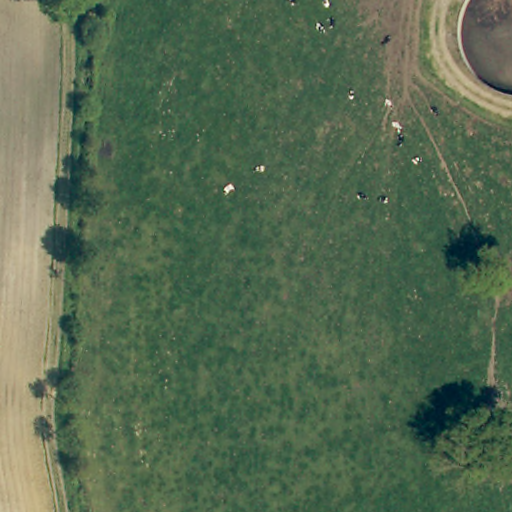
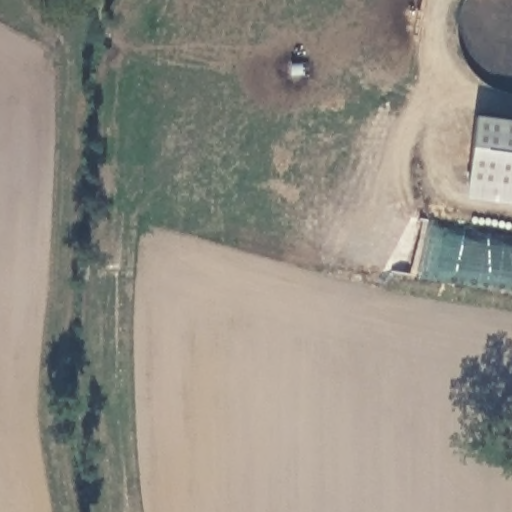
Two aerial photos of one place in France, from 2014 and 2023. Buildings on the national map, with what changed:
new [(512,120),(512,205),(464,199),(474,115),(512,120)]

